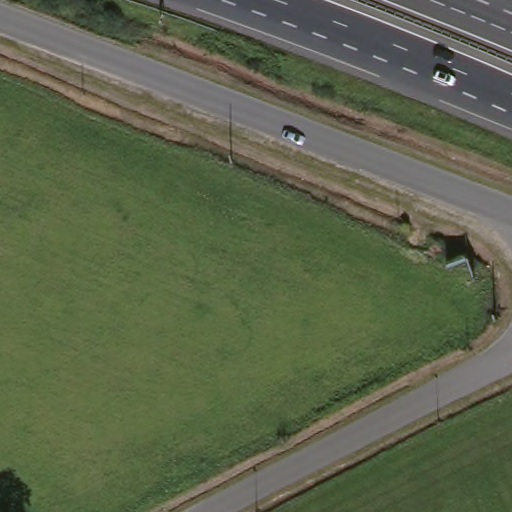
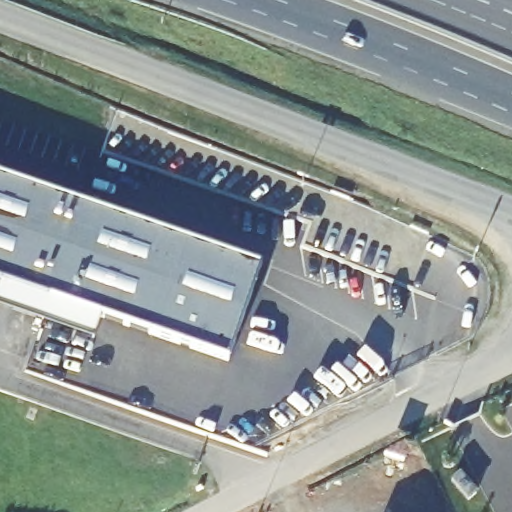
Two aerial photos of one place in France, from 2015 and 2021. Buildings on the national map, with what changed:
new [(260,268),(229,360),(102,317),(95,340),(0,308),(0,178),(260,268)]

